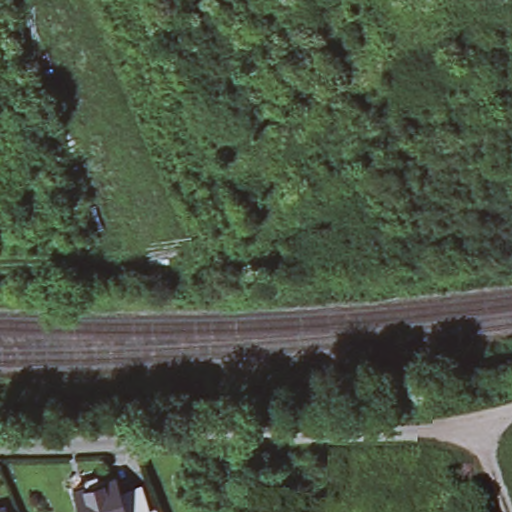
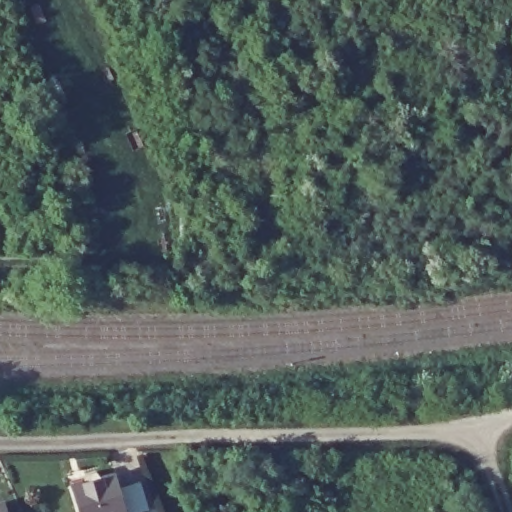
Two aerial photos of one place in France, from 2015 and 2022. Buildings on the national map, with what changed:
unchanged [(86,481),(87,473),(96,471),(100,477),(115,473),(120,486),(123,485),(138,481),(147,511),(141,512),(80,512),(72,485),(86,481)]
unchanged [(8,512),(0,512),(0,510),(7,508),(8,512)]

